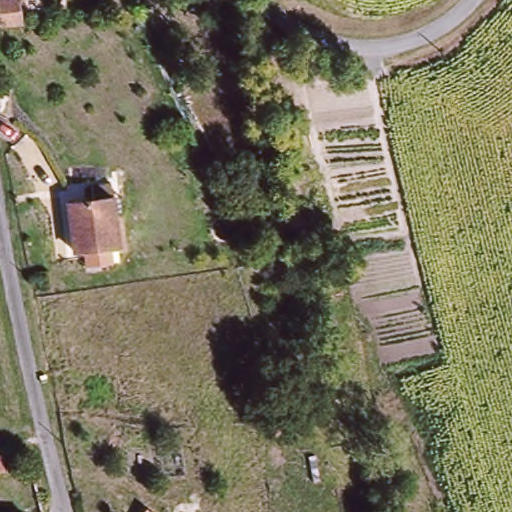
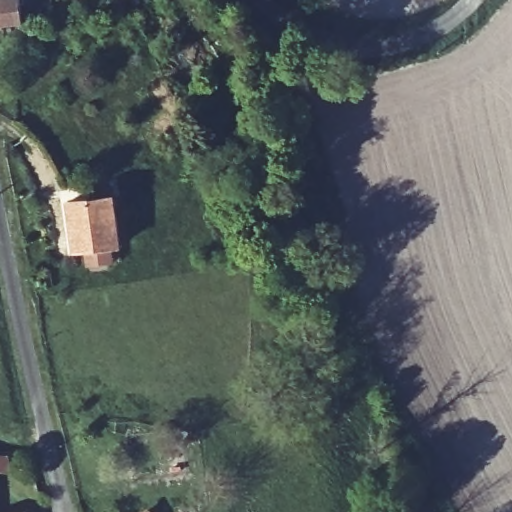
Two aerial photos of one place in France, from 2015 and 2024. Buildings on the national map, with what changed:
unchanged [(32,28),(0,33),(0,5),(28,0),(32,28)]
unchanged [(119,203),(124,249),(71,257),(67,209),(119,203)]
unchanged [(16,458),(8,462),(9,475),(0,476),(0,450),(14,451),(16,458)]

